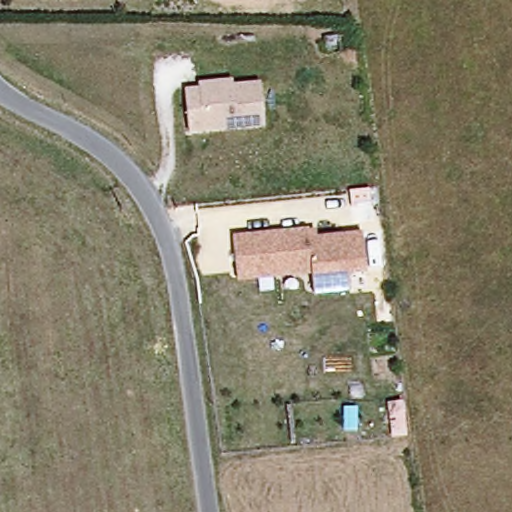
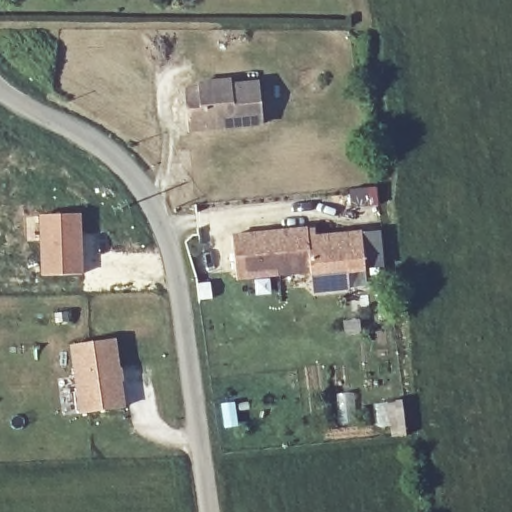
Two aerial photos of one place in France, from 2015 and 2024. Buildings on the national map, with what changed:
unchanged [(198,87),(197,80),(231,76),(232,84),(258,81),(264,127),(186,136),(182,88),(198,87)]
new [(81,213),(83,274),(40,276),(36,215),(81,213)]
unchanged [(304,227),(317,236),(363,231),(368,288),(312,294),(310,274),(235,280),(232,233),(304,227)]
new [(123,409),(81,414),(73,344),(115,340),(123,409)]

